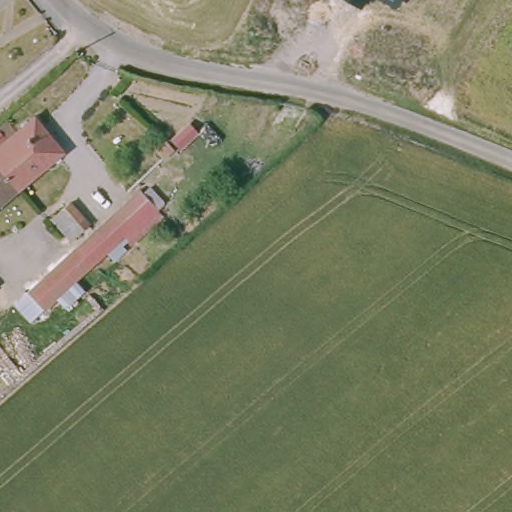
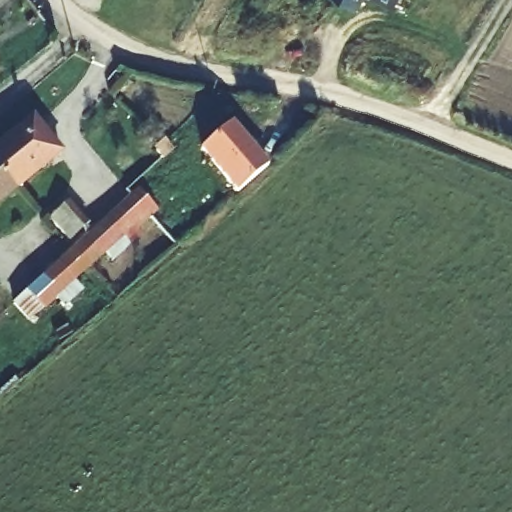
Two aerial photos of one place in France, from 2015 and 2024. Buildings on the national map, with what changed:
unchanged [(360,6),(348,0),(364,0),(360,6)]
unchanged [(394,6),(384,0),(397,0),(394,6)]
unchanged [(57,147),(10,186),(0,173),(0,135),(27,112),(57,147)]
new [(268,167),(236,195),(198,152),(231,124),(268,167)]
unchanged [(0,173),(10,186),(0,195),(0,173)]
unchanged [(136,230),(140,235),(128,247),(119,237),(80,273),(65,255),(137,190),(157,210),(136,230)]
unchanged [(80,221),(60,239),(40,216),(60,200),(80,221)]
unchanged [(80,273),(26,322),(10,305),(65,255),(80,273)]

